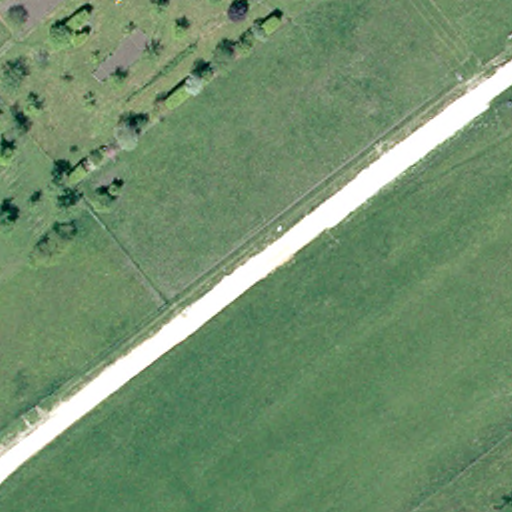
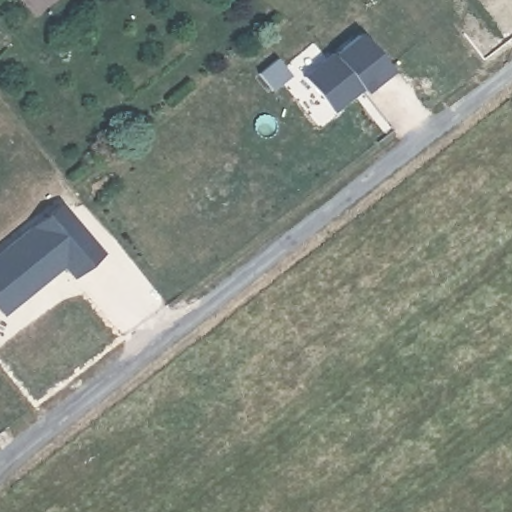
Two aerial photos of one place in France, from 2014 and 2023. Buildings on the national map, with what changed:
new [(334,52),(360,32),(390,72),(362,93),(360,89),(331,112),(302,75),(334,52)]
new [(64,263),(2,313),(0,310),(0,254),(62,203),(100,250),(73,275),(64,263)]

